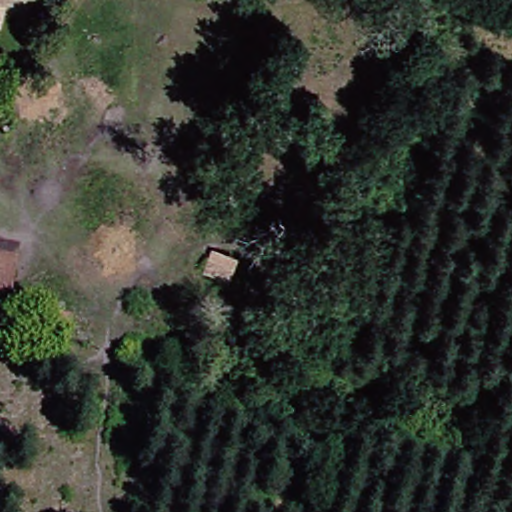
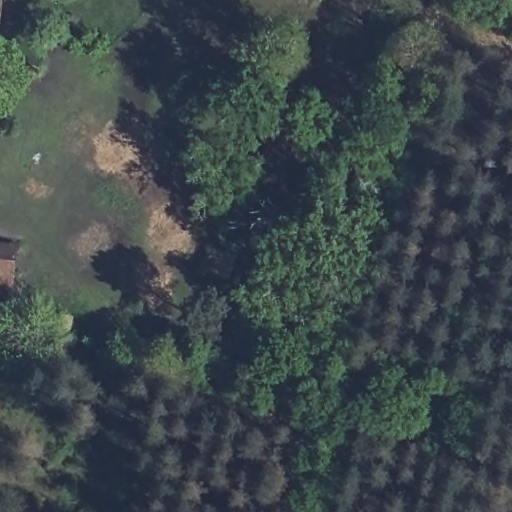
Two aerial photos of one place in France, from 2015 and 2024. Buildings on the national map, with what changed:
unchanged [(9,292),(0,290),(0,243),(14,245),(9,292)]
unchanged [(214,290),(223,255),(242,258),(235,295),(214,290)]
unchanged [(88,317),(85,334),(61,328),(64,311),(88,317)]

